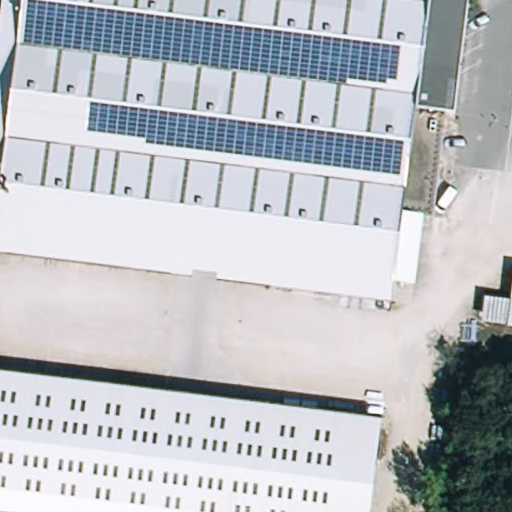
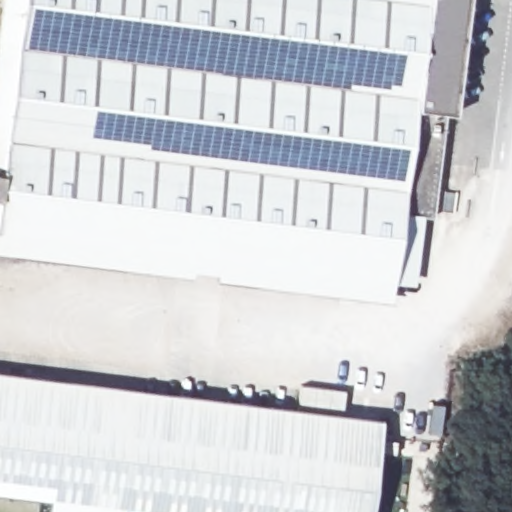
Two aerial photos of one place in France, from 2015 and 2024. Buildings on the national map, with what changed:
unchanged [(445,102),(432,208),(424,206),(403,204),(394,273),(0,224),(0,188),(3,164),(0,164),(0,15),(2,0),(467,0),(454,104),(445,102)]
unchanged [(0,188),(0,164),(3,164),(0,188)]
unchanged [(424,206),(415,275),(394,273),(403,204),(424,206)]
unchanged [(392,291),(218,269),(217,264),(193,261),(191,266),(0,242),(0,224),(394,273),(392,291)]
unchanged [(379,512),(57,512),(0,506),(0,369),(16,371),(389,417),(379,512)]

